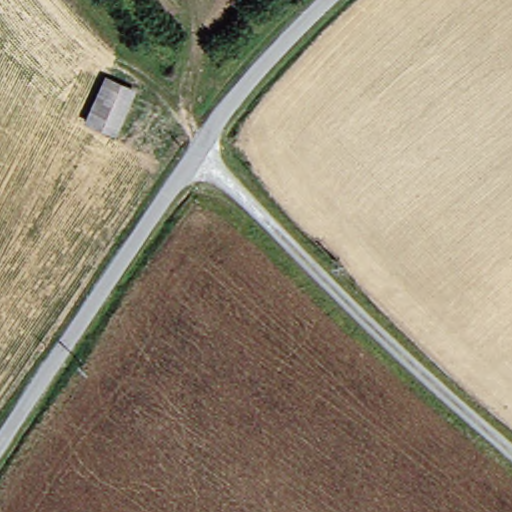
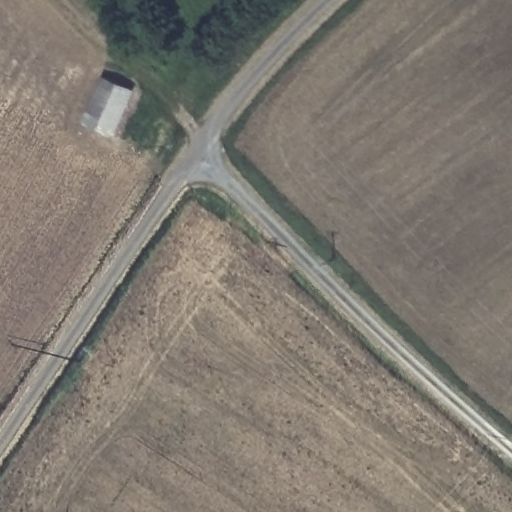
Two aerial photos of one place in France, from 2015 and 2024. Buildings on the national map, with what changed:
unchanged [(102,124),(111,79),(142,87),(134,128),(102,124)]

